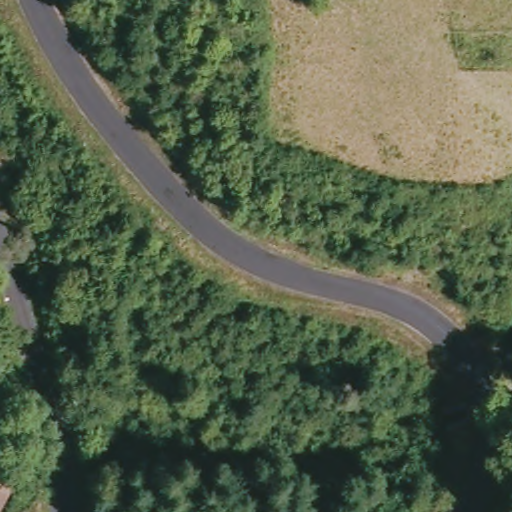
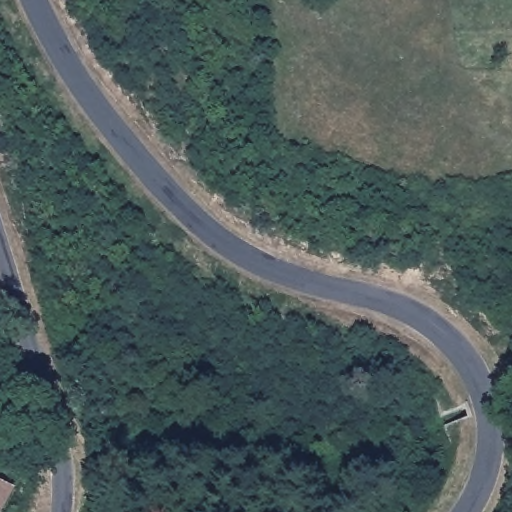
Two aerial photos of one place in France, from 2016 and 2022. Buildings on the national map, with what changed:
unchanged [(0,512),(0,479),(20,488),(9,512),(0,512)]

